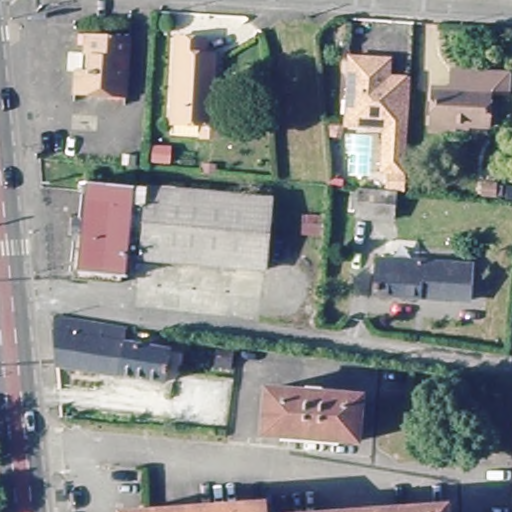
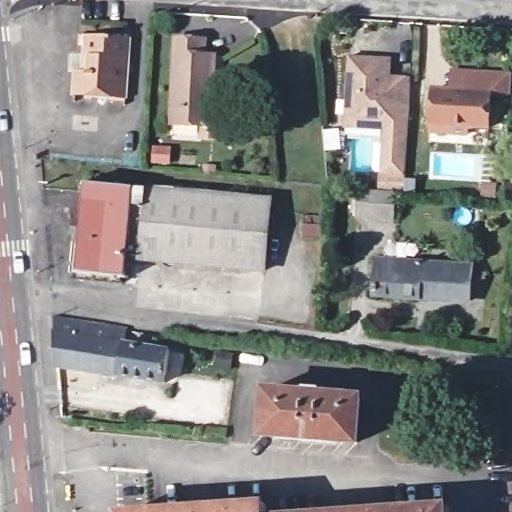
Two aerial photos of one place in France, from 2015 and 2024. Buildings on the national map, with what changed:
unchanged [(196,126),(166,125),(170,35),(199,36),(199,51),(208,51),(208,90),(218,90),(215,137),(205,137),(196,137),(196,126)]
unchanged [(128,39),(123,101),(109,101),(109,104),(88,101),(88,100),(73,98),(75,75),(80,75),(82,59),(81,59),(83,37),(128,39)]
unchanged [(380,172),(381,145),(382,129),(343,126),(347,58),(387,60),(386,77),(408,79),(404,145),(403,173),(380,172)]
unchanged [(431,141),(431,132),(434,91),(448,91),(449,71),(470,72),(512,75),(510,96),(492,96),(489,135),(468,134),(467,143),(431,141)]
unchanged [(76,229),(85,229),(89,184),(272,201),(263,272),(126,260),(124,278),(78,275),(80,239),(75,238),(76,229)]
unchanged [(479,187),(497,189),(496,202),(479,200),(479,187)]
unchanged [(397,192),(395,219),(357,215),(358,189),(397,192)]
unchanged [(319,222),(318,242),(304,241),(306,221),(319,222)]
unchanged [(471,267),(468,302),(374,295),(378,261),(471,267)]
unchanged [(54,338),(55,338),(54,325),(133,336),(131,351),(169,357),(165,389),(58,375),(54,338)]
unchanged [(219,356),(234,358),(233,374),(216,372),(219,356)]
unchanged [(267,390),(362,397),(357,443),(263,436),(267,390)]
unchanged [(114,511),(260,500),(261,512),(115,512),(114,511)]
unchanged [(441,502),(442,512),(323,512),(441,502)]

